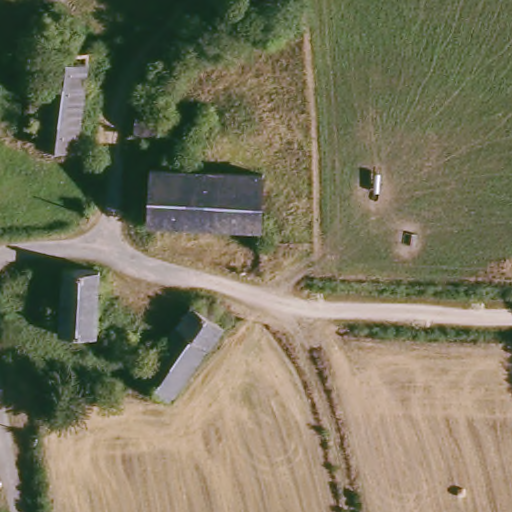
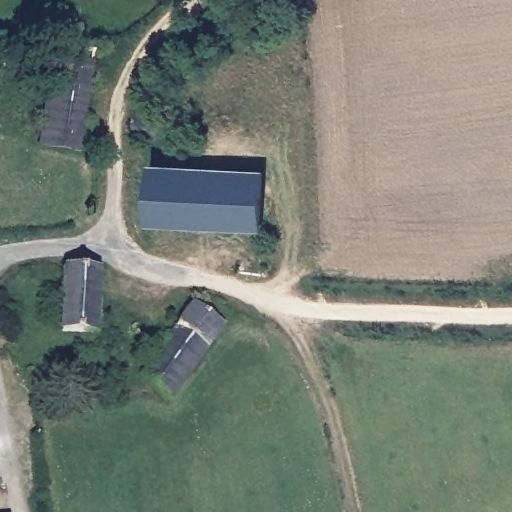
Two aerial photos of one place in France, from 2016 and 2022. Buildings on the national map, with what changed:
unchanged [(42,146),(51,44),(90,50),(81,150),(42,146)]
unchanged [(160,111),(157,137),(132,131),(136,104),(160,111)]
unchanged [(210,170),(207,225),(152,222),(155,169),(210,170)]
unchanged [(267,171),(265,228),(207,225),(210,170),(267,171)]
unchanged [(107,338),(72,338),(72,297),(58,295),(59,270),(107,270),(107,334),(107,338)]
unchanged [(175,401),(144,379),(194,307),(201,311),(210,303),(220,310),(217,320),(227,327),(175,401)]

